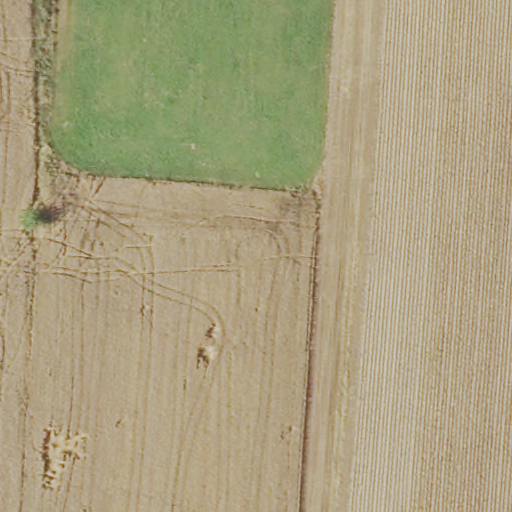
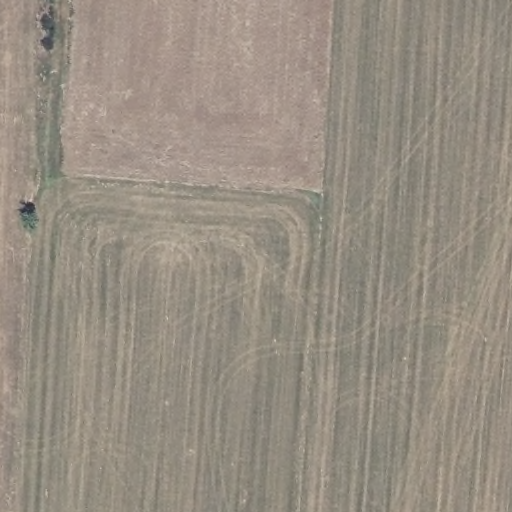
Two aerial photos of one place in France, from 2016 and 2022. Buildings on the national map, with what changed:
[]

